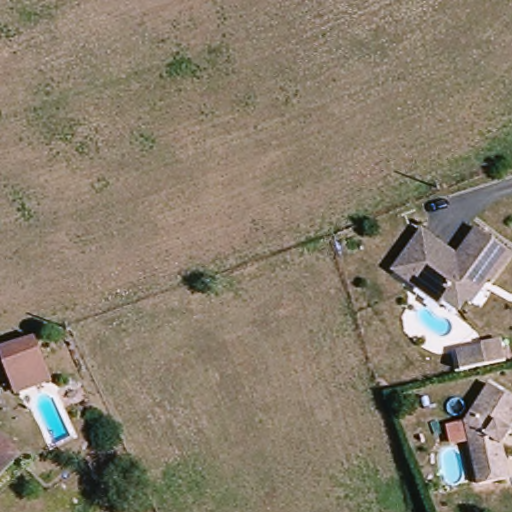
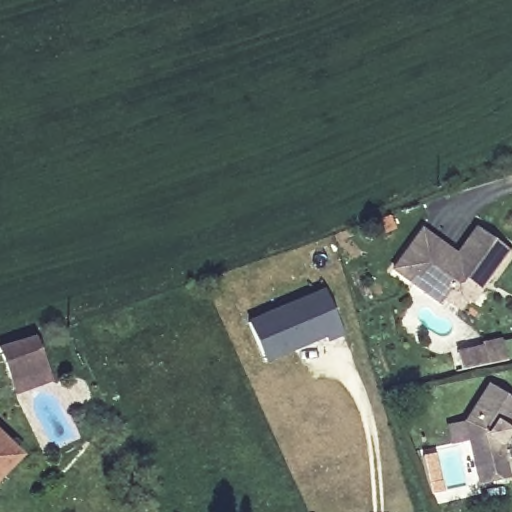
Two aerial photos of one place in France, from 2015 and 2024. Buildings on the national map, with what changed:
unchanged [(489,280),(485,281),(481,278),(457,310),(442,300),(444,297),(432,288),(427,295),(392,270),(421,231),(456,257),(476,230),(509,255),(489,280)]
new [(266,361),(249,320),(325,288),(344,334),(328,341),(326,336),(266,361)]
unchanged [(0,348),(32,337),(47,383),(14,395),(0,357),(0,348)]
unchanged [(483,369),(457,375),(453,352),(480,347),(483,369)]
unchanged [(496,447),(502,480),(473,486),(462,422),(486,386),(512,404),(512,417),(503,430),(506,432),(496,447)]
unchanged [(0,481),(0,439),(22,458),(0,481)]

